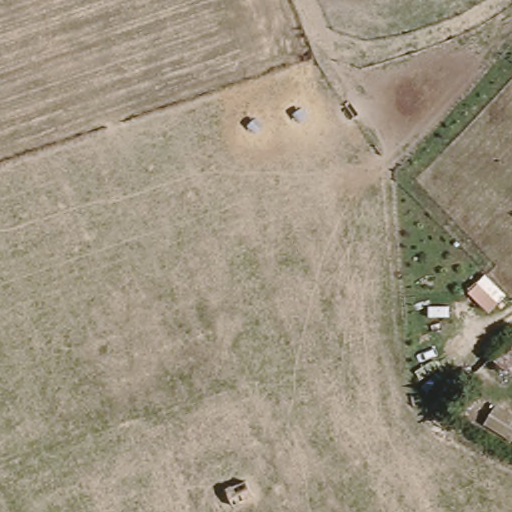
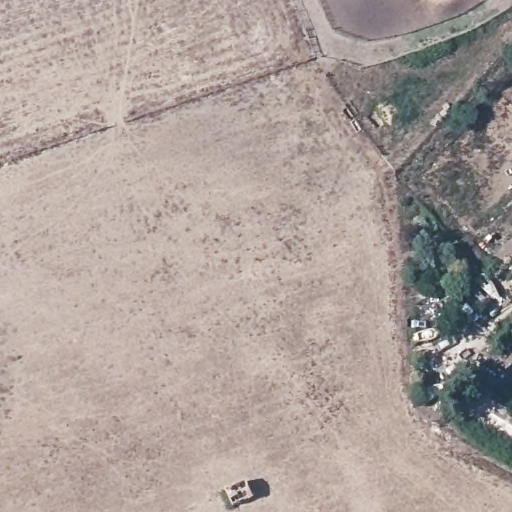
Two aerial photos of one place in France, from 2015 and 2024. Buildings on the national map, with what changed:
unchanged [(468,291),(485,275),(505,295),(489,312),(468,291)]
unchanged [(512,364),(505,372),(491,358),(512,337),(512,364)]
unchanged [(497,405),(512,415),(512,437),(510,440),(485,423),(497,405)]
unchanged [(243,478),(255,497),(233,508),(225,490),(243,478)]

